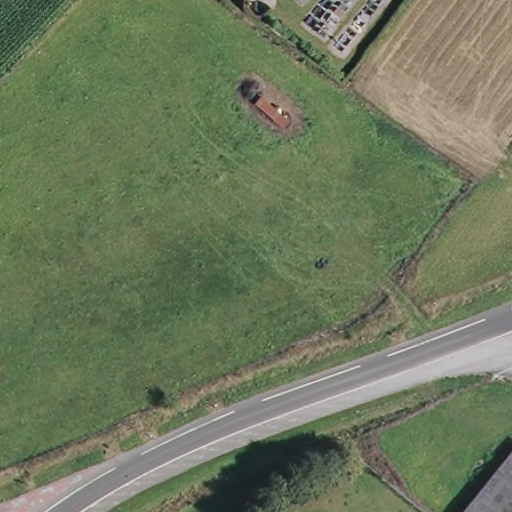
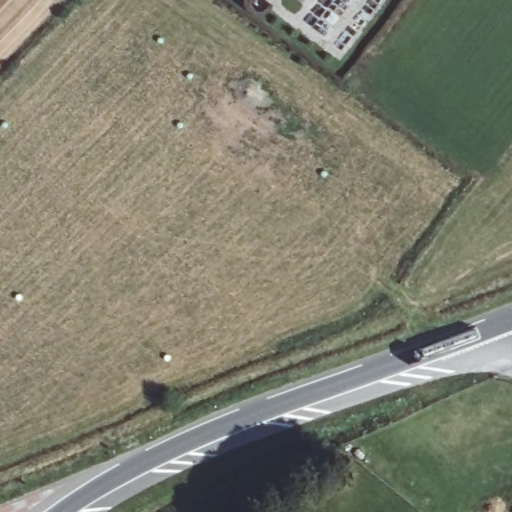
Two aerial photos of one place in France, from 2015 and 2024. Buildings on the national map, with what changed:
demolished [(512,512),(463,512),(512,453),(512,512)]

